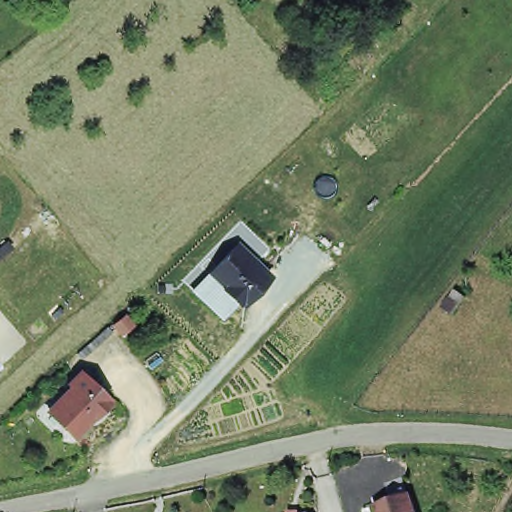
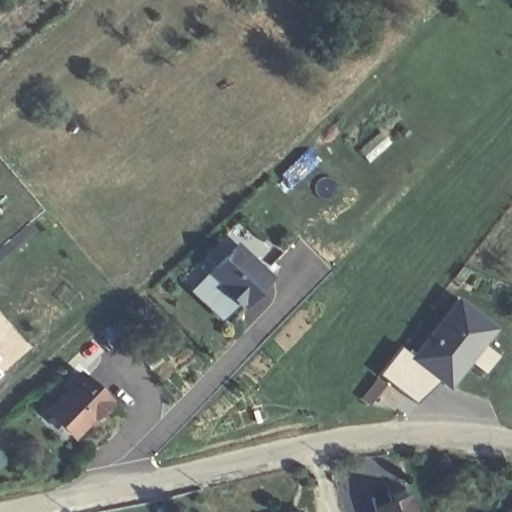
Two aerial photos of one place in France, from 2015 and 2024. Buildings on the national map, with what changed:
unchanged [(272,275),(243,310),(207,270),(237,240),(272,275)]
new [(418,404),(380,375),(401,347),(415,357),(459,300),(495,328),(483,345),(498,356),(486,372),(470,360),(450,386),(442,380),(419,403),(418,404)]
unchanged [(110,396),(108,398),(110,400),(95,420),(92,417),(73,438),(45,408),(81,368),(110,396)]
unchanged [(397,501),(413,495),(415,500),(420,512),(384,512),(382,506),(397,501)]

